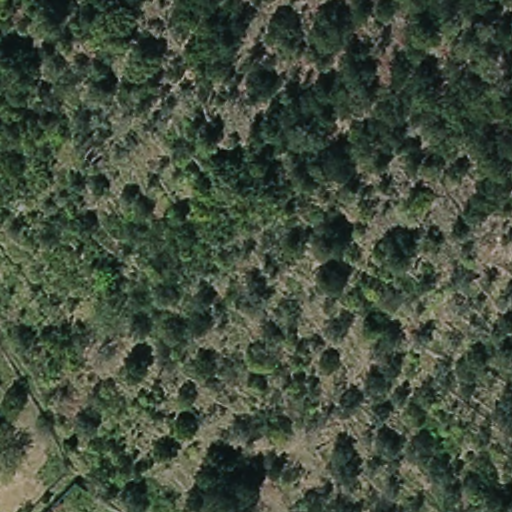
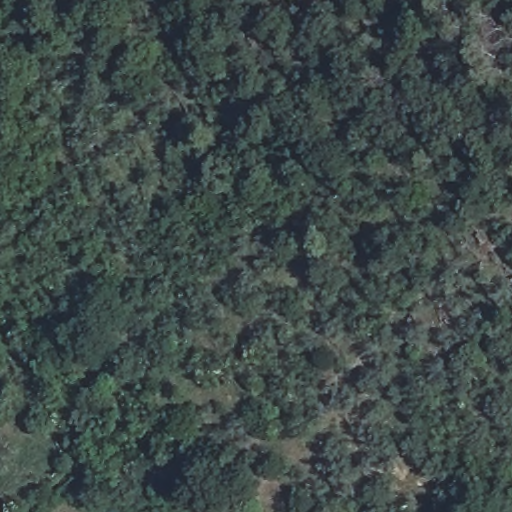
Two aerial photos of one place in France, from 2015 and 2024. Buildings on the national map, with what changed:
[]

